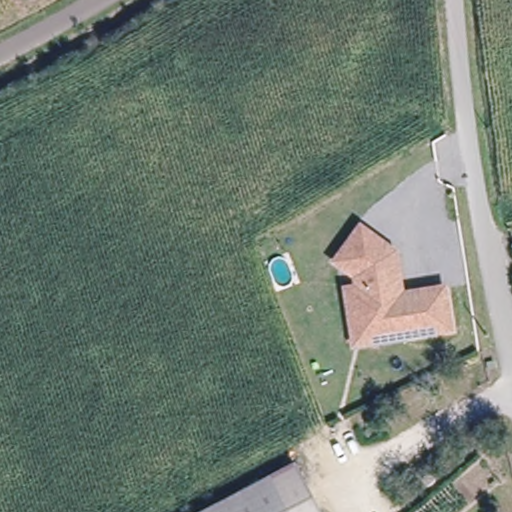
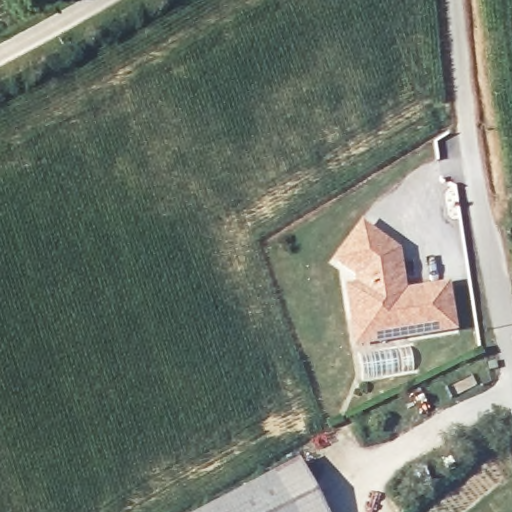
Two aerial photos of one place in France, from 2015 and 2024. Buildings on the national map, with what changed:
unchanged [(356,322),(356,319),(351,289),(362,287),(361,276),(341,262),(366,227),(400,252),(407,294),(413,293),(450,288),(456,331),(382,341),(359,345),(356,322)]
unchanged [(297,463),(323,512),(201,512),(297,463)]

